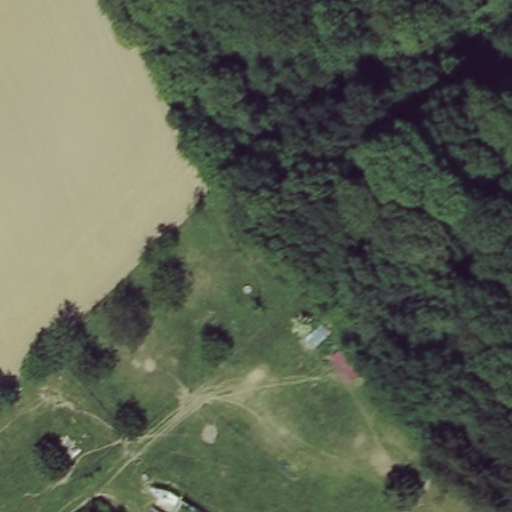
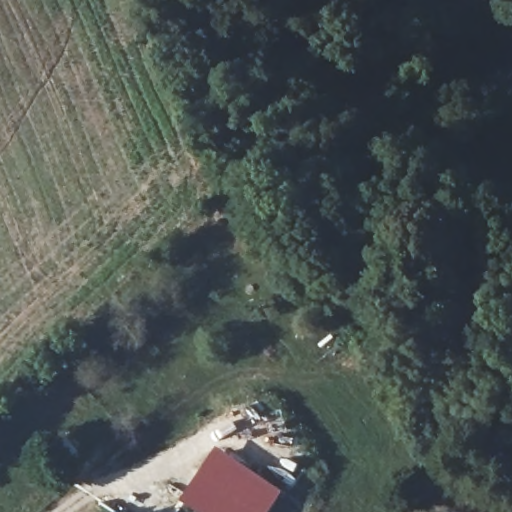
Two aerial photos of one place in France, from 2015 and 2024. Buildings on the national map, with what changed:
new [(181,500),(219,447),(283,491),(269,512),(199,512),(181,500)]

